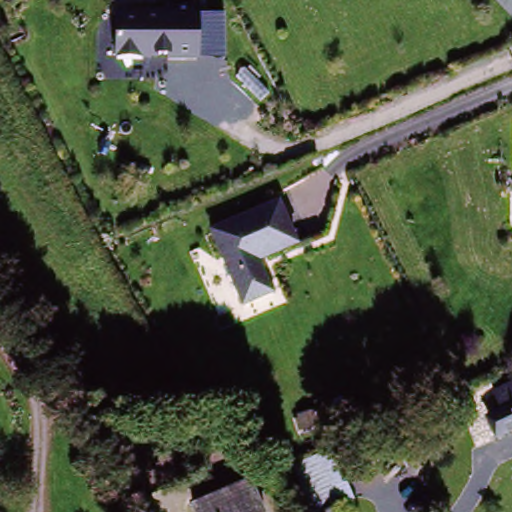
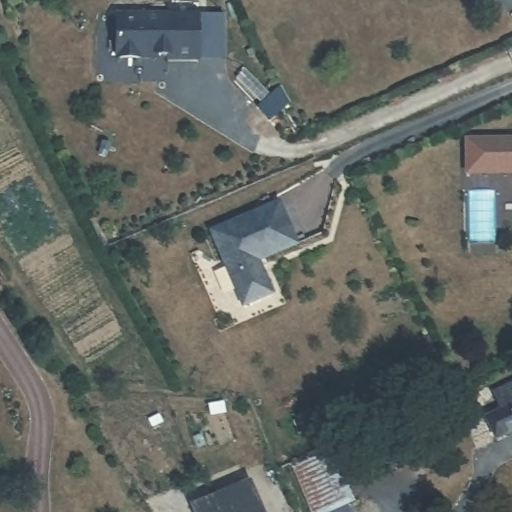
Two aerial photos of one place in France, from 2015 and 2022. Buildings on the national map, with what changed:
unchanged [(198,12),(199,57),(168,57),(168,53),(156,53),(156,56),(118,56),(118,12),(198,12)]
new [(512,136),(512,175),(465,177),(463,137),(512,136)]
unchanged [(272,295),(244,307),(218,243),(213,231),(214,230),(282,202),(290,222),(300,246),(265,260),(259,262),(272,295)]
unchanged [(482,422),(504,412),(500,402),(512,397),(512,438),(493,447),(482,422)]
unchanged [(295,426),(299,424),(298,422),(312,415),(318,427),(304,435),(301,436),(295,426)]
unchanged [(345,499),(351,512),(326,512),(324,507),(311,512),(292,470),(340,448),(360,492),(345,499)]
unchanged [(189,505),(245,482),(256,512),(192,512),(189,505)]

